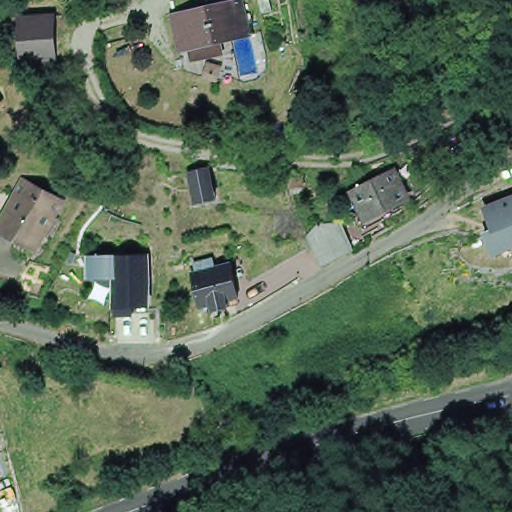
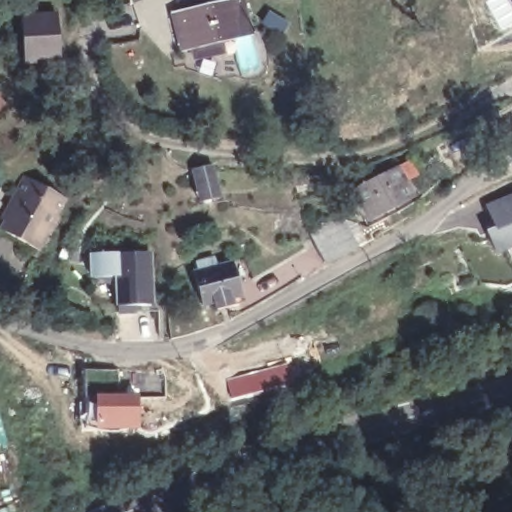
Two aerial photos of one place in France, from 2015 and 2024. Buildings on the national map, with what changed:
unchanged [(222,35),(225,46),(196,53),(193,42),(186,44),(178,10),(223,0),(246,0),(248,10),(254,9),(256,17),(250,19),(252,28),(222,35)]
new [(508,0),(512,0),(512,9),(508,0)]
unchanged [(55,10),(60,57),(25,59),(20,12),(55,10)]
unchanged [(0,105),(0,97),(3,101),(0,105)]
unchanged [(197,200),(191,170),(211,166),(217,196),(197,200)]
unchanged [(393,168),(407,193),(391,202),(392,205),(369,218),(354,189),(393,168)]
unchanged [(18,194),(14,192),(23,174),(62,194),(35,245),(1,227),(18,194)]
unchanged [(485,229),(494,227),(484,203),(512,191),(512,246),(495,253),(485,229)]
unchanged [(311,232),(321,224),(334,223),(340,220),(354,245),(322,262),(307,235),(311,232)]
unchanged [(150,301),(134,301),(134,309),(117,308),(117,281),(96,272),(90,272),(90,250),(148,249),(150,301)]
unchanged [(216,299),(205,302),(196,267),(201,266),(200,258),(216,254),(218,262),(235,258),(244,292),(231,295),(233,302),(218,305),(216,299)]
new [(135,393),(136,430),(92,430),(92,394),(135,393)]

